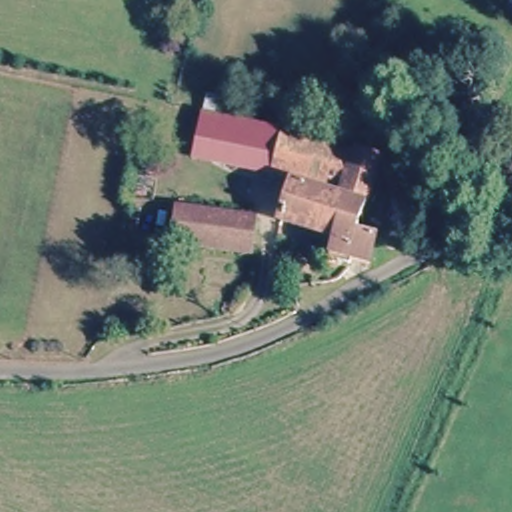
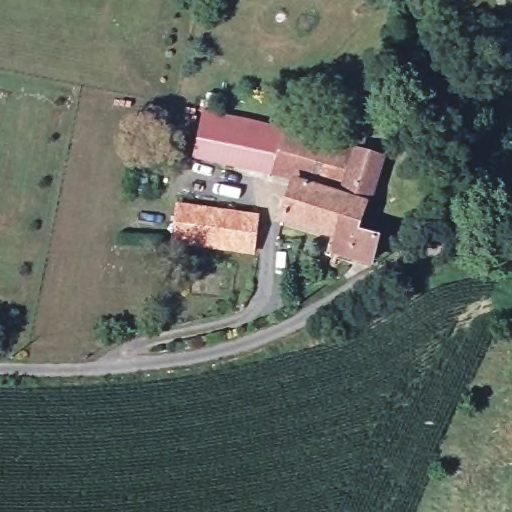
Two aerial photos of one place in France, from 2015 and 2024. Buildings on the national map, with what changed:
unchanged [(213,160),(204,159),(208,142),(214,116),(286,133),(280,157),(276,176),(213,160)]
unchanged [(383,156),(371,202),(344,195),(331,236),(284,222),(297,181),(276,176),(280,157),(286,133),(383,156)]
unchanged [(371,202),(370,205),(370,206),(360,245),(357,245),(354,245),(349,257),(345,256),(336,255),(341,240),(331,236),(344,195),(371,202)]
unchanged [(176,244),(180,207),(256,216),(252,253),(176,244)]

